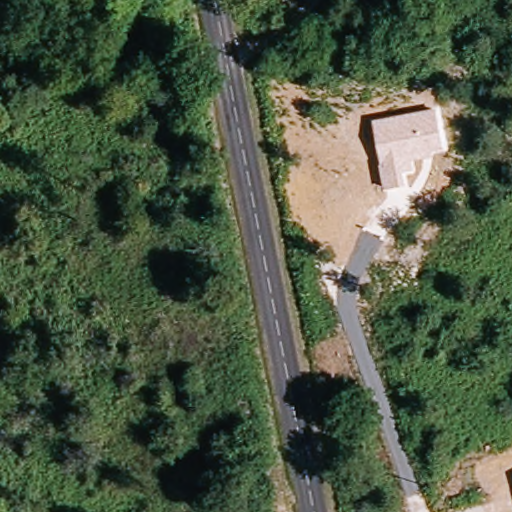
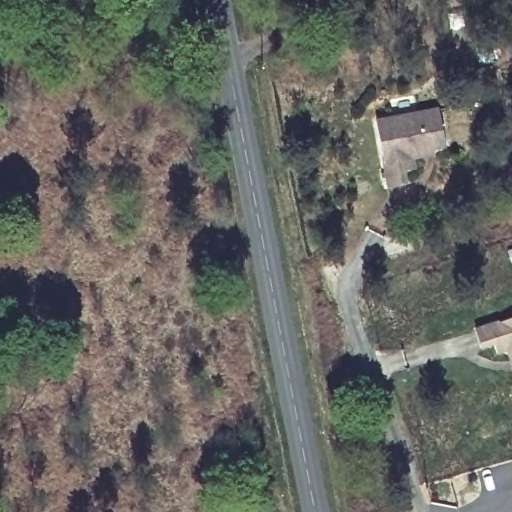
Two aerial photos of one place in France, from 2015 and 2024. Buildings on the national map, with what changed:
unchanged [(446,149),(432,152),(433,155),(415,159),(415,169),(406,172),(407,183),(385,188),(373,119),(436,107),(446,149)]
new [(497,354),(494,346),(480,350),(474,329),(512,316),(512,373),(506,353),(497,354)]

